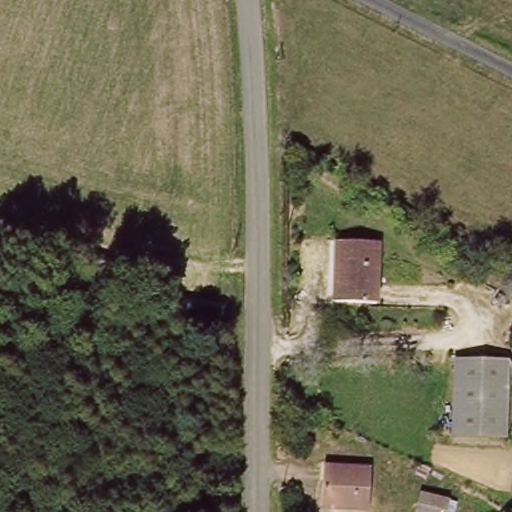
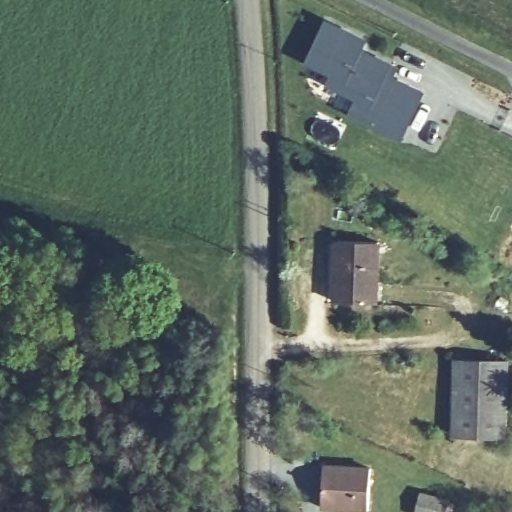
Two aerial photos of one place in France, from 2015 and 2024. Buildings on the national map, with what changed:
new [(365,50),(399,67),(392,77),(425,91),(403,140),(345,112),(351,97),(324,83),(328,72),(302,61),(323,17),(368,38),(365,50)]
unchanged [(375,242),(374,301),(333,300),(333,242),(375,242)]
unchanged [(453,435),(456,358),(505,360),(502,437),(453,435)]
unchanged [(367,464),(367,503),(320,502),(320,463),(367,464)]
unchanged [(420,490),(443,494),(440,512),(428,512),(416,510),(420,490)]

